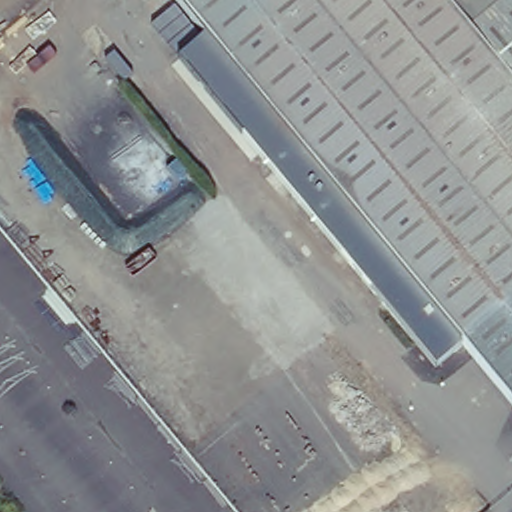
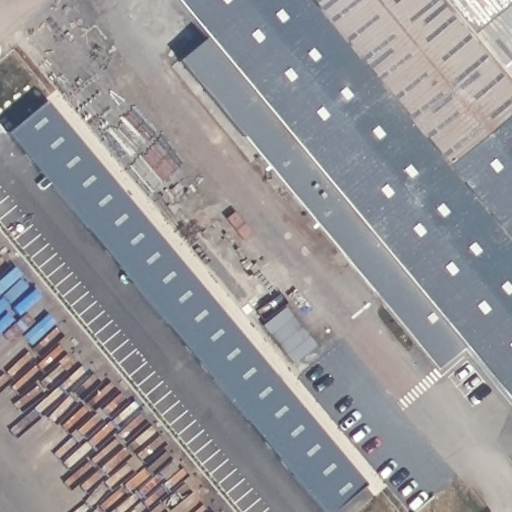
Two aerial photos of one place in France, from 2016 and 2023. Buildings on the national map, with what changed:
unchanged [(468,344),(442,365),(189,67),(215,44),(178,0),(512,0),(512,396),(468,344)]
new [(363,482),(329,512),(322,512),(6,133),(42,99),(363,482)]
demolished [(65,512),(0,434),(0,327),(154,512),(65,512)]

